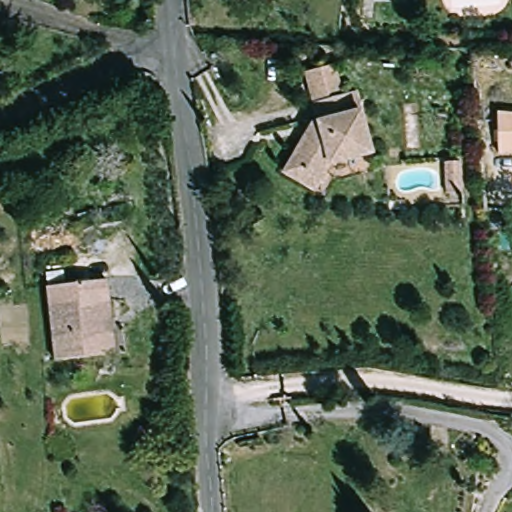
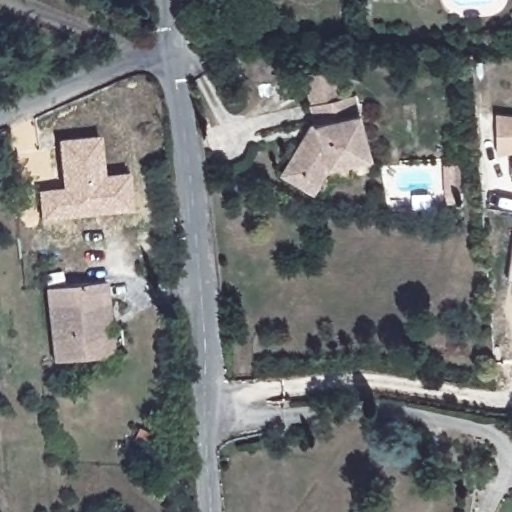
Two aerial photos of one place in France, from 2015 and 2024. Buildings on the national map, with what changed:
unchanged [(301,70),(330,63),(339,95),(310,103),(301,70)]
unchanged [(310,122),(315,121),(310,103),(339,95),(351,92),(367,151),(325,163),(309,190),(280,173),(310,122)]
unchanged [(500,114),(512,116),(512,155),(498,155),(500,114)]
new [(128,172),(133,208),(42,220),(39,190),(63,186),(58,139),(100,134),(105,174),(128,172)]
unchanged [(458,159),(459,191),(442,192),(440,160),(458,159)]
new [(512,252),(512,278),(508,277),(512,252)]
unchanged [(100,358),(54,363),(46,287),(106,280),(108,302),(114,356),(100,358)]

